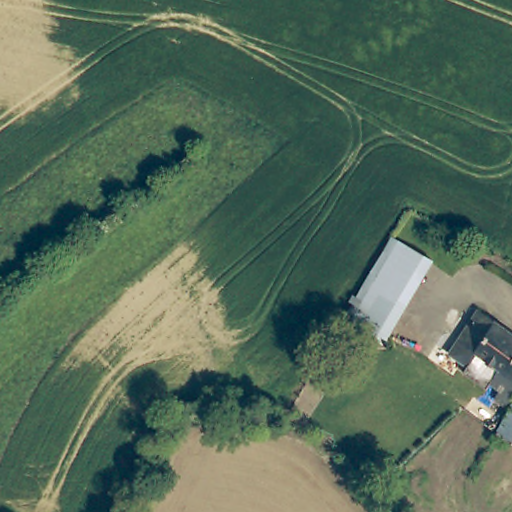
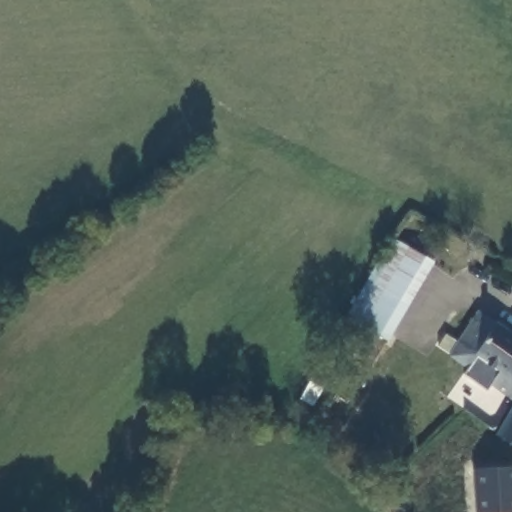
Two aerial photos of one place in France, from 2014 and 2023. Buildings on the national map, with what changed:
unchanged [(391,244),(428,262),(387,341),(351,322),(391,244)]
unchanged [(447,352),(467,321),(459,316),(465,306),(471,310),(475,304),(512,332),(512,397),(511,398),(460,365),(452,375),(425,357),(433,343),(447,352)]
demolished [(468,398),(499,418),(491,431),(460,412),(468,398)]
unchanged [(512,445),(496,435),(512,408),(512,445)]
new [(512,466),(512,512),(476,512),(473,468),(512,466)]
unchanged [(158,512),(137,512),(142,503),(158,512)]

